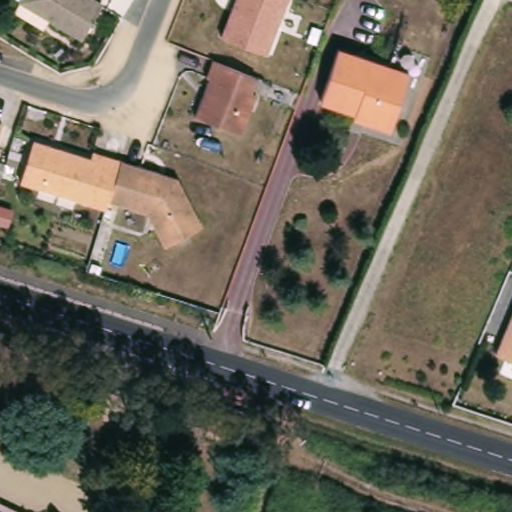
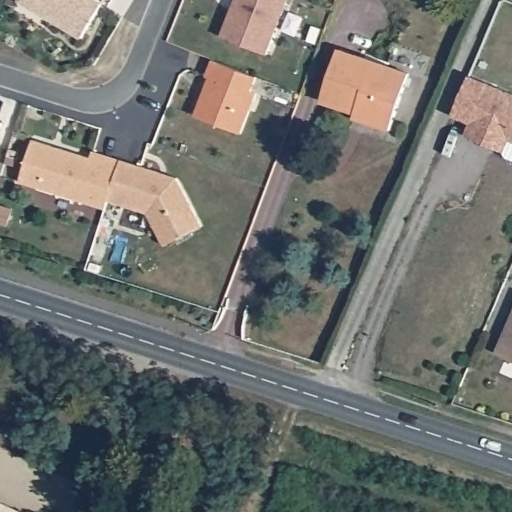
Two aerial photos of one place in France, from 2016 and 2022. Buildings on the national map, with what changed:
unchanged [(111,9),(91,42),(22,1),(22,0),(97,0),(111,9)]
unchanged [(270,54),(226,37),(241,0),(292,0),(270,54)]
unchanged [(325,101),(343,50),(414,74),(395,130),(371,122),(358,117),(360,112),(325,101)]
unchanged [(247,129),(201,111),(214,77),(210,76),(217,60),(261,77),(257,87),(262,89),(247,129)]
new [(512,93),(512,141),(509,140),(505,152),(465,136),(470,122),(453,116),(470,76),(512,93)]
unchanged [(0,145),(0,120),(7,122),(0,145)]
unchanged [(110,209),(25,182),(38,140),(55,145),(65,148),(95,158),(97,152),(126,161),(113,201),(110,209)]
unchanged [(207,227),(169,247),(152,213),(113,201),(126,161),(165,173),(162,182),(168,185),(182,179),(207,227)]
unchanged [(512,319),(512,359),(498,353),(512,319)]
unchanged [(14,512),(0,512),(0,506),(14,512)]

